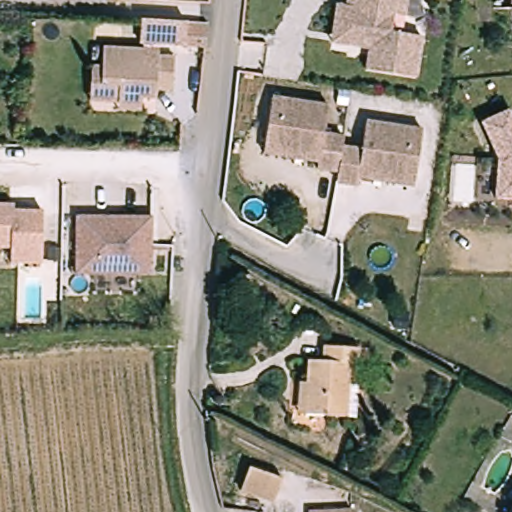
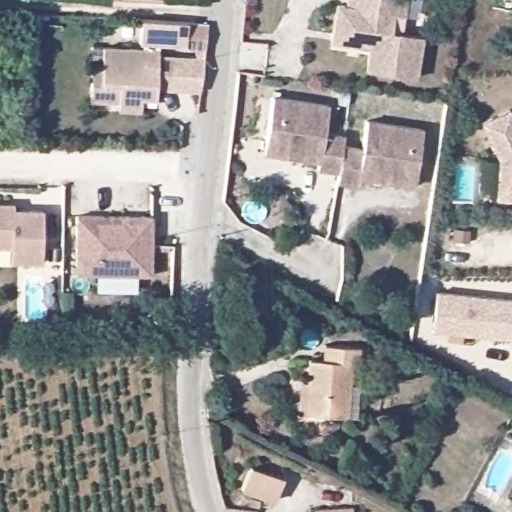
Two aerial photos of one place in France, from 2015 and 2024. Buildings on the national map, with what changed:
unchanged [(337,36),(341,7),(351,9),(352,0),(410,0),(407,17),(397,16),(395,33),(425,37),(420,79),(371,72),(373,57),(374,50),(336,44),(337,36)]
unchanged [(512,4),(505,4),(505,0),(512,0),(512,4)]
unchanged [(95,100),(97,66),(107,67),(108,47),(148,49),(149,42),(145,42),(146,19),(191,21),(190,44),(164,43),(163,56),(180,57),(178,89),(162,88),(161,98),(147,97),(146,102),(146,110),(123,109),(123,101),(95,100)]
unchanged [(269,144),(275,99),(331,107),(327,135),(347,138),(346,148),(342,173),(322,170),(323,163),(306,160),(267,155),(269,144)]
unchanged [(512,121),(512,194),(490,193),(493,153),(476,117),(503,104),(512,121)]
unchanged [(380,181),(363,179),(362,186),(341,183),(342,173),(346,148),(366,151),(370,122),(426,130),(420,175),(419,186),(380,181)]
unchanged [(13,205),(13,211),(42,211),(40,264),(10,263),(10,248),(0,248),(0,204),(13,205)]
unchanged [(151,216),(151,274),(136,274),(96,274),(76,274),(76,215),(151,216)]
new [(431,330),(436,291),(512,300),(512,321),(510,338),(431,330)]
unchanged [(328,360),(330,345),(365,347),(363,363),(355,363),(352,416),(305,413),(307,382),(313,382),(315,359),(328,360)]
unchanged [(251,465),(284,476),(275,500),(242,488),(251,465)]
unchanged [(358,508),(358,512),(316,512),(315,509),(358,508)]

